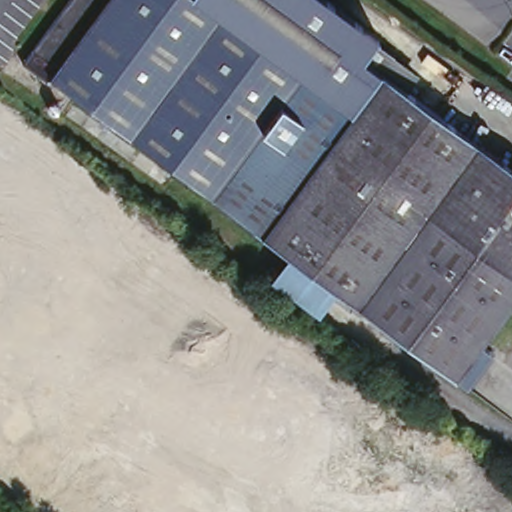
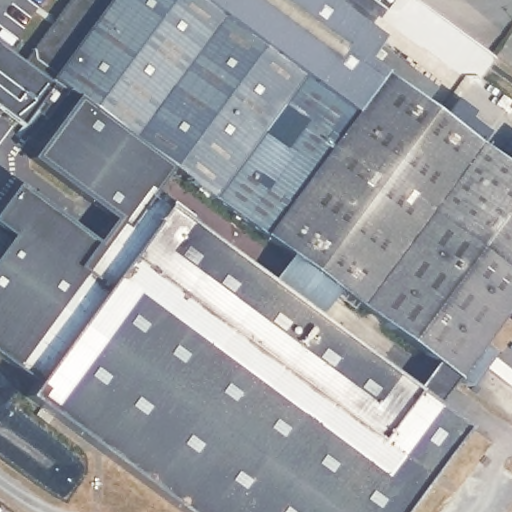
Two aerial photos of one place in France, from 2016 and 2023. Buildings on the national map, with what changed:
unchanged [(258,233),(208,198),(67,94),(51,82),(53,69),(27,50),(64,0),(324,0),(371,35),(368,41),(390,57),(380,71),(388,79),(268,241),(258,233)]
new [(47,89),(51,82),(67,94),(45,123),(30,113),(17,128),(0,116),(0,54),(47,89)]
unchanged [(512,172),(512,302),(480,344),(489,351),(460,387),(348,301),(291,258),(268,241),(388,79),(475,144),(512,172)]
new [(152,195),(269,284),(291,258),(348,301),(341,311),(332,305),(321,320),(462,433),(404,512),(172,512),(23,402),(34,387),(0,361),(0,254),(10,240),(0,234),(0,209),(15,188),(94,247),(113,222),(31,162),(75,100),(171,171),(152,195)]

